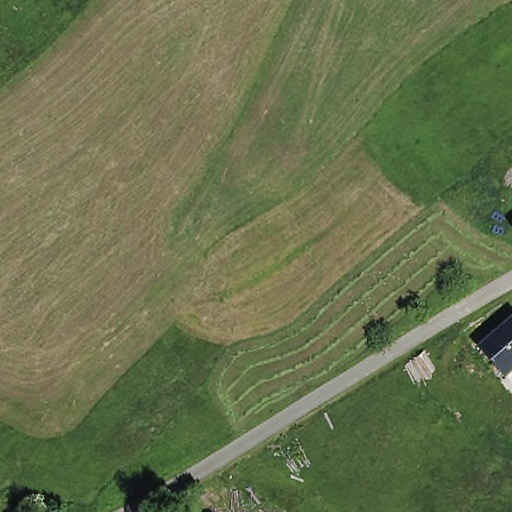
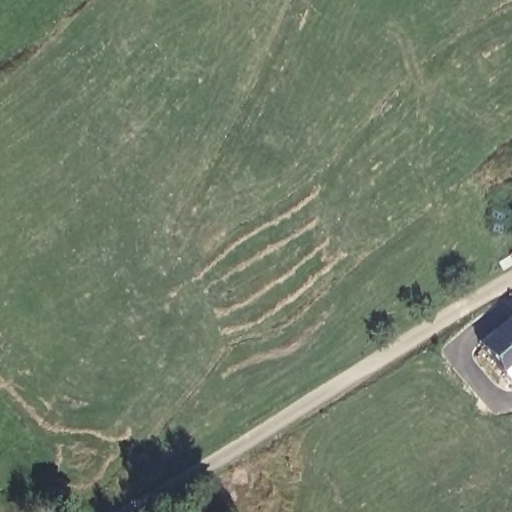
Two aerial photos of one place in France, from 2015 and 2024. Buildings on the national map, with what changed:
unchanged [(512,320),(512,366),(499,377),(475,350),(511,318),(512,320)]

